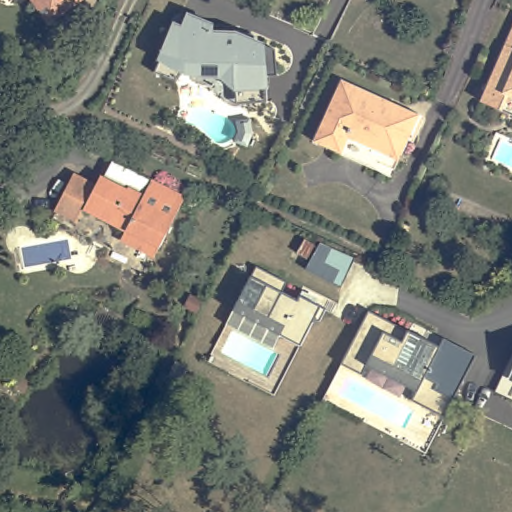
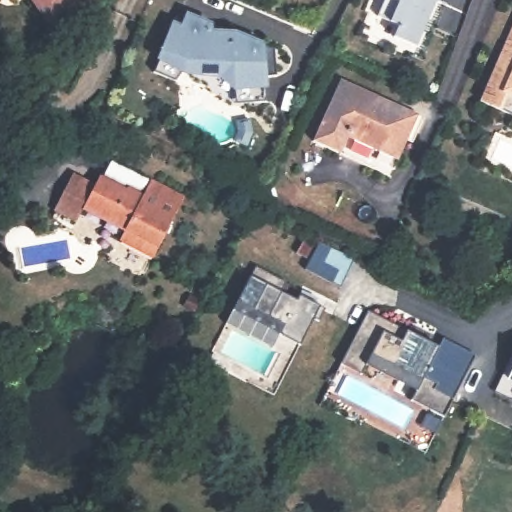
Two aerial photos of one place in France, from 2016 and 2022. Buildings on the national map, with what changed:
unchanged [(37,0),(76,0),(51,19),(37,0)]
new [(391,37),(397,25),(375,16),(382,0),(435,0),(415,47),(391,37)]
unchanged [(235,94),(233,72),(216,71),(215,71),(207,64),(189,63),(186,67),(175,82),(154,73),(173,24),(181,28),(186,15),(207,23),(210,24),(210,32),(234,33),(235,33),(274,49),(276,76),(265,77),(267,102),(245,104),(236,105),(235,94)]
unchanged [(480,101),(512,30),(512,115),(500,110),(480,101)]
unchanged [(417,113),(397,158),(347,136),(340,151),(325,144),(313,139),(341,78),(352,83),(417,113)]
unchanged [(160,253),(130,237),(130,226),(90,205),(82,218),(61,206),(81,172),(100,183),(106,174),(111,177),(120,160),(156,180),(190,198),(160,253)]
unchanged [(319,243),(353,258),(340,286),(307,268),(319,243)]
unchanged [(288,280),(283,290),(298,298),(300,294),(327,307),(320,320),(315,317),(301,344),(280,333),(282,328),(236,304),(257,264),(288,280)]
unchanged [(342,362),(367,309),(407,330),(437,345),(442,338),(475,355),(447,415),(412,399),(418,389),(366,365),(362,372),(342,362)]
unchanged [(512,377),(510,376),(512,372),(512,377)]

